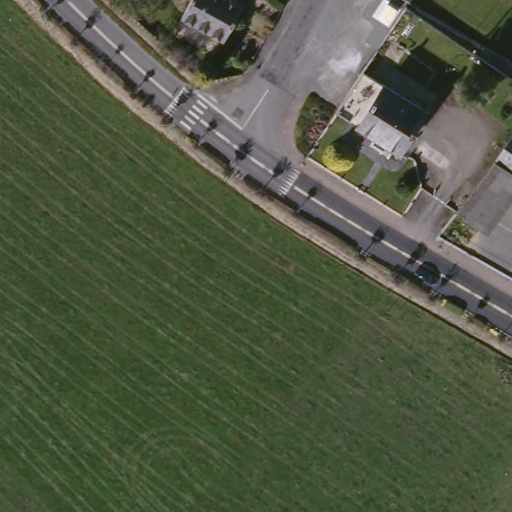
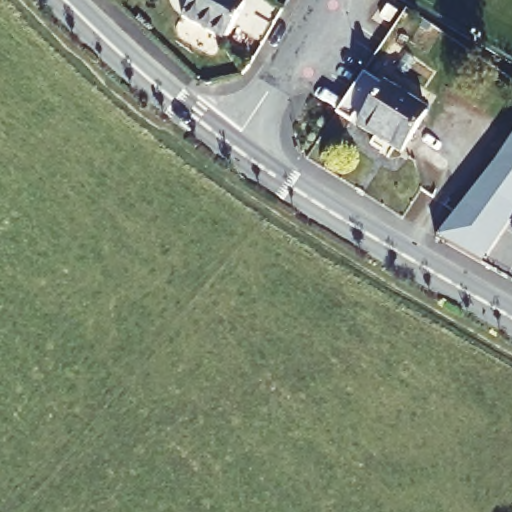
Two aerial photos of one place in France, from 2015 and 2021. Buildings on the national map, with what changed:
unchanged [(227,43),(184,21),(195,0),(233,0),(247,7),(227,43)]
unchanged [(429,113),(400,161),(335,120),(367,73),(429,113)]
new [(505,142),(512,132),(512,146),(505,142)]
unchanged [(512,146),(512,186),(487,170),(505,142),(512,146)]
new [(482,264),(437,237),(487,170),(512,186),(512,219),(482,264)]

